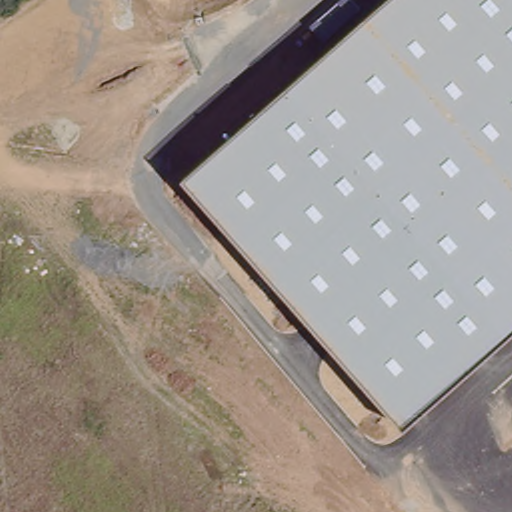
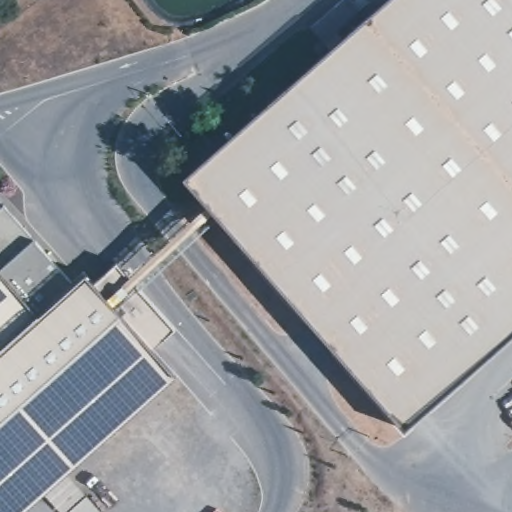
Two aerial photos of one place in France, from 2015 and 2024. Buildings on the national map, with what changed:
unchanged [(183,177),(384,0),(512,0),(512,330),(402,425),(183,177)]
new [(34,239),(73,284),(85,273),(116,263),(127,275),(202,199),(215,213),(140,290),(175,328),(147,345),(175,375),(21,512),(0,512),(0,207),(3,206),(34,239)]

